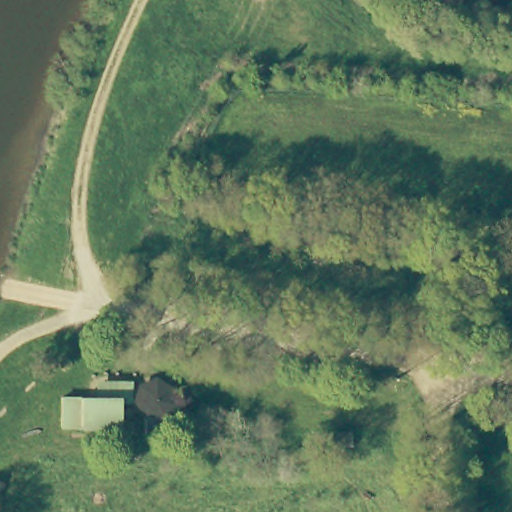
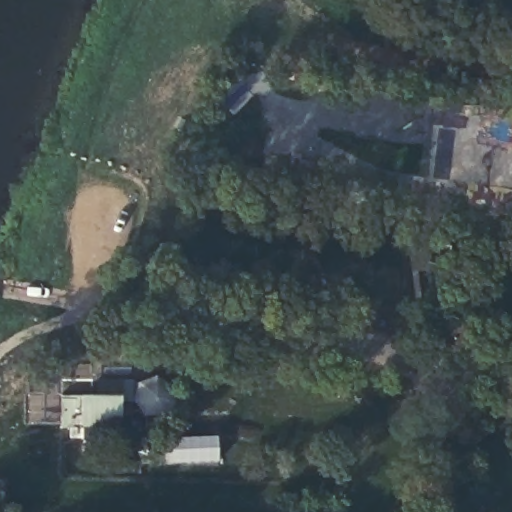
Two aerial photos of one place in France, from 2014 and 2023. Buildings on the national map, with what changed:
unchanged [(451,247),(447,267),(428,264),(432,244),(451,247)]
unchanged [(118,397),(118,425),(60,425),(61,396),(118,397)]
unchanged [(330,431),(351,431),(351,444),(330,445),(330,431)]

